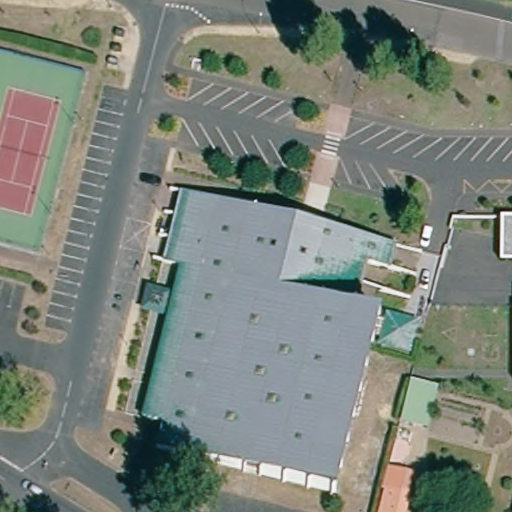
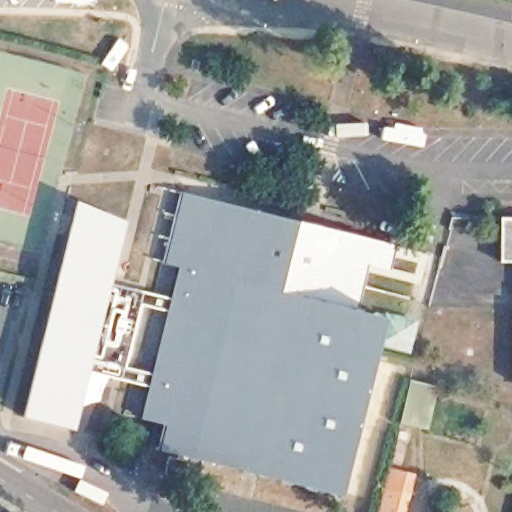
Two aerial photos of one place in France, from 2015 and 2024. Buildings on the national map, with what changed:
new [(89,371),(75,430),(21,415),(76,200),(125,219),(111,281),(171,295),(167,310),(139,305),(125,366),(151,373),(148,386),(89,371)]
unchanged [(392,252),(385,280),(362,273),(352,315),(375,320),(367,352),(331,497),(154,453),(160,427),(139,422),(176,272),(164,269),(181,200),(392,252)]
unchanged [(501,216),(512,216),(512,260),(501,260),(501,216)]
unchanged [(387,316),(411,322),(403,352),(379,345),(387,316)]
unchanged [(437,386),(427,426),(402,420),(412,380),(437,386)]
unchanged [(403,512),(382,512),(386,499),(382,498),(387,480),(410,485),(403,512)]

